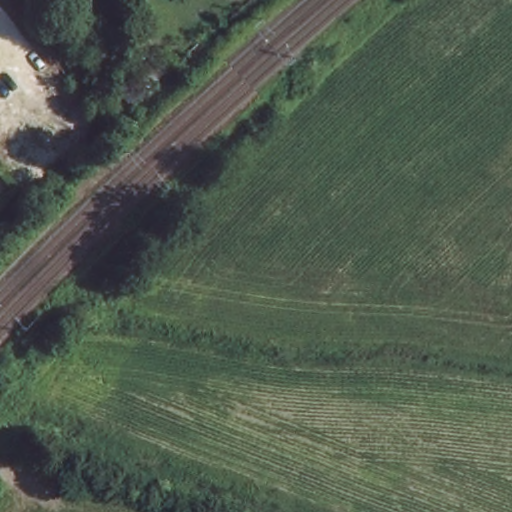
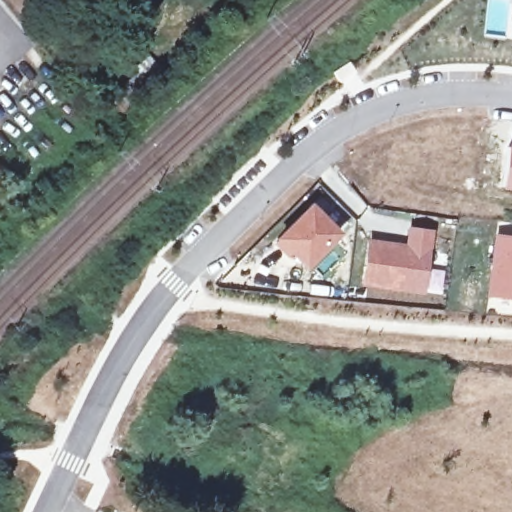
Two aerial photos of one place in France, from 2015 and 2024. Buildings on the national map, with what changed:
new [(512,144),(512,190),(502,188),(508,143),(512,144)]
new [(310,201),(341,232),(304,270),(272,241),(310,201)]
new [(368,238),(405,243),(408,225),(434,229),(429,268),(444,270),(441,294),(425,292),(425,295),(361,286),(368,238)]
new [(512,235),(512,300),(486,296),(495,232),(512,235)]

